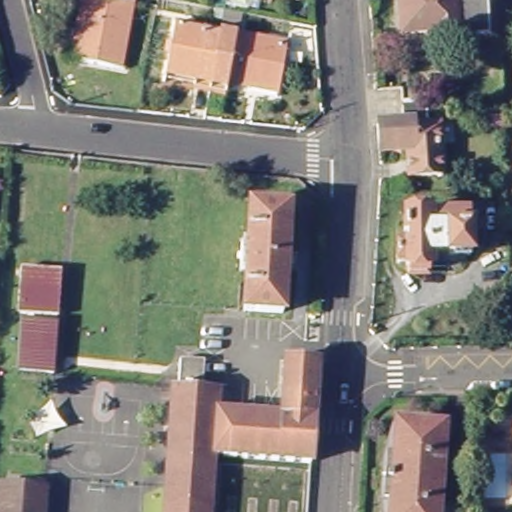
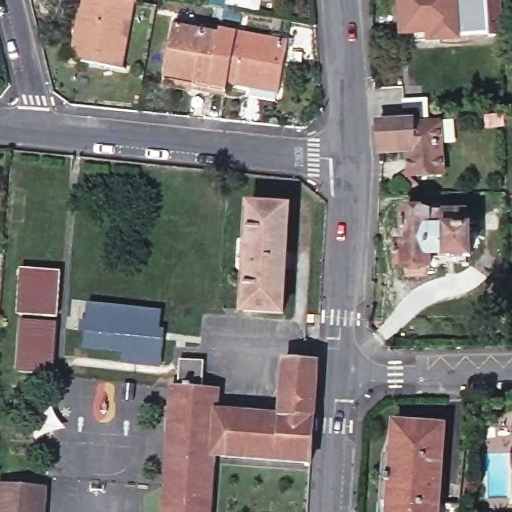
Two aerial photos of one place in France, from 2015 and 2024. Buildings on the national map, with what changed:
unchanged [(133,2),(136,3),(124,72),(82,64),(87,36),(81,35),(88,0),(122,0),(133,2)]
unchanged [(133,2),(122,0),(134,0),(133,2)]
unchanged [(501,38),(436,43),(435,34),(403,36),(400,0),(502,0),(501,38)]
unchanged [(211,90),(192,86),(194,80),(165,75),(173,32),(220,40),(211,90)]
unchanged [(220,40),(221,34),(288,46),(280,89),(251,83),(250,89),(223,84),(222,91),(211,90),(220,40)]
unchanged [(399,108),(399,102),(434,99),(435,122),(445,121),(448,175),(414,178),(411,149),(385,151),(383,125),(400,124),(399,108)]
unchanged [(503,128),(483,129),(482,119),(503,118),(503,128)]
unchanged [(284,314),(244,312),(246,274),(240,273),(242,245),(247,245),(250,208),(289,209),(284,314)]
unchanged [(429,214),(429,218),(445,217),(445,214),(467,213),(467,229),(470,228),(470,258),(447,258),(447,256),(430,256),(431,270),(406,270),(405,264),(398,264),(397,245),(405,245),(405,215),(429,214)]
unchanged [(62,278),(59,319),(20,318),(22,276),(62,278)]
new [(122,363),(124,352),(83,346),(86,306),(158,313),(155,340),(163,341),(161,364),(122,363)]
unchanged [(58,330),(55,374),(22,371),(24,328),(58,330)]
unchanged [(183,390),(185,360),(208,361),(206,393),(223,394),(222,419),(288,423),(291,368),(321,369),(323,369),(316,467),(315,467),(219,461),(216,512),(171,512),(179,390),(183,390)]
unchanged [(390,512),(390,498),(383,497),(386,455),(394,455),(396,423),(444,425),(439,498),(460,499),(459,512),(390,512)]
unchanged [(44,489),(43,507),(7,504),(7,512),(0,512),(0,506),(1,485),(44,489)]
unchanged [(43,507),(43,512),(7,512),(7,504),(43,507)]

